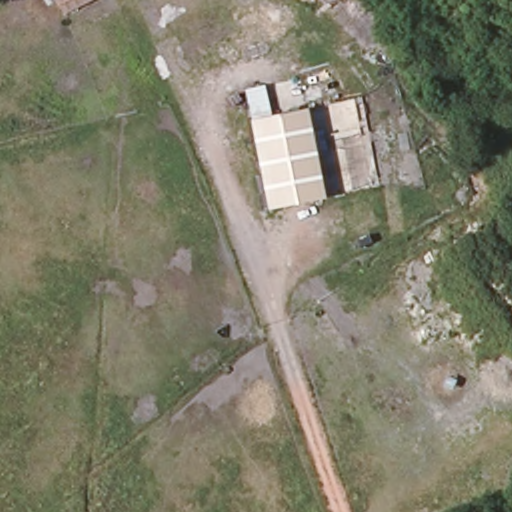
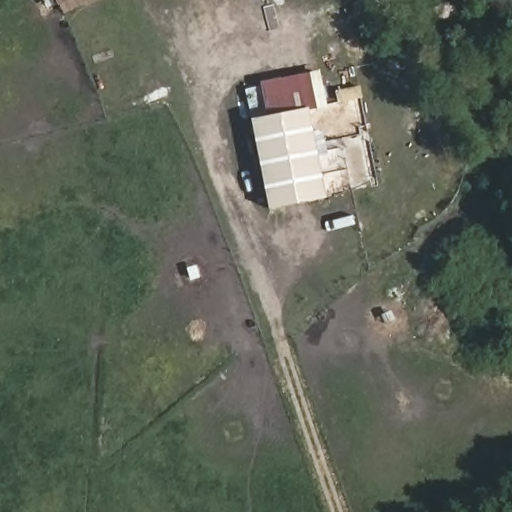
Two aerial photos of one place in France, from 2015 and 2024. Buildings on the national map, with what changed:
unchanged [(66,16),(57,0),(95,0),(66,16)]
unchanged [(271,213),(252,123),(271,119),(266,88),(318,75),(325,108),(311,111),(330,202),(271,213)]

